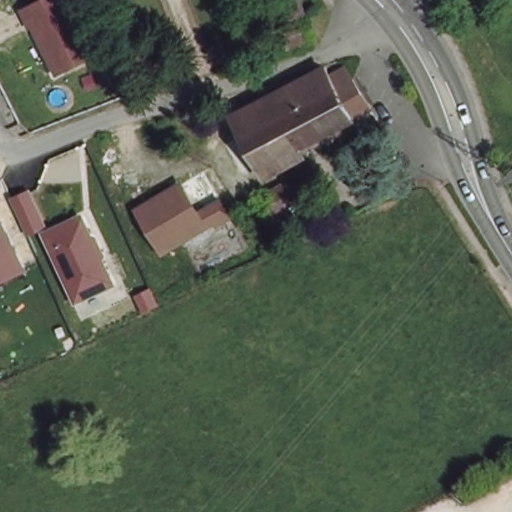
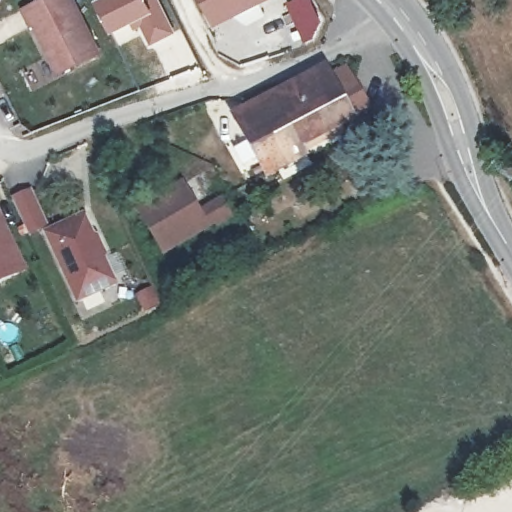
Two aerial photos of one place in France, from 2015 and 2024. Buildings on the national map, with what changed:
unchanged [(38,22),(35,24),(27,8),(43,0),(76,0),(101,50),(68,68),(62,70),(53,52),(38,22)]
new [(149,47),(138,24),(111,36),(95,2),(99,0),(160,0),(177,34),(149,47)]
new [(198,0),(270,0),(212,29),(198,0)]
unchanged [(269,14),(274,12),(294,6),(302,34),(284,38),(276,40),(269,14)]
unchanged [(272,156),(256,166),(238,140),(253,129),(243,114),(243,113),(242,111),(326,63),(332,74),(350,64),(373,104),(356,114),(288,151),(293,159),(279,167),(279,166),(272,156)]
unchanged [(271,190),(287,180),(301,173),(311,187),(314,194),(283,211),(271,190)]
new [(30,180),(46,214),(29,221),(14,187),(30,180)]
unchanged [(141,213),(179,186),(199,215),(221,199),(229,210),(207,226),(169,252),(141,213)]
unchanged [(29,274),(0,287),(0,208),(29,274)]
unchanged [(118,285),(76,304),(43,230),(86,212),(118,285)]

